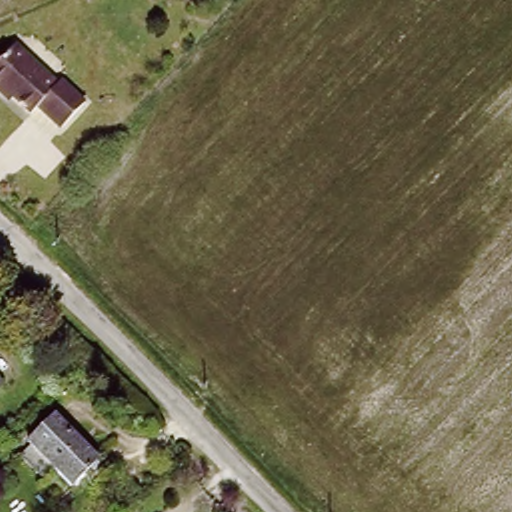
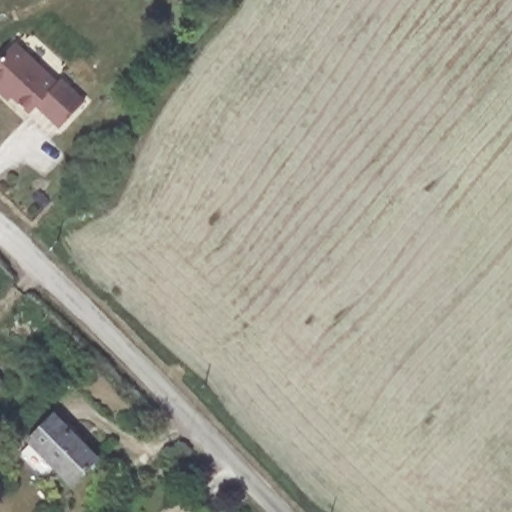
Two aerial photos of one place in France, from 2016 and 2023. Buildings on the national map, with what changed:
unchanged [(61,77),(87,100),(61,127),(41,109),(35,114),(5,87),(1,91),(0,90),(0,63),(19,44),(59,81),(61,77)]
unchanged [(0,403),(0,381),(11,392),(0,403)]
unchanged [(27,442),(56,416),(100,458),(70,486),(27,442)]

